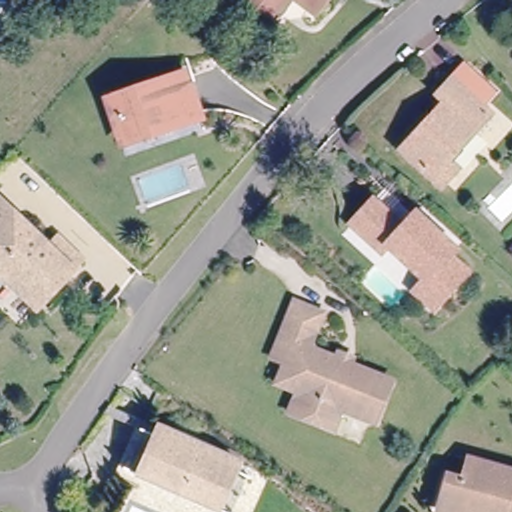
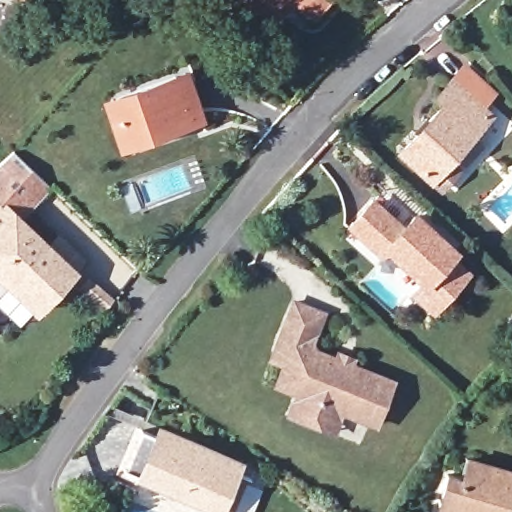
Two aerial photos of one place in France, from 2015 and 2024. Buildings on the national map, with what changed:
unchanged [(20,0),(25,0),(24,1),(20,0)]
unchanged [(220,0),(222,0),(221,1),(220,0)]
unchanged [(295,0),(282,15),(263,0),(295,0)]
unchanged [(329,0),(322,9),(310,0),(329,0)]
unchanged [(172,71),(184,69),(197,115),(186,119),(122,139),(109,90),(172,71)]
unchanged [(468,90),(485,105),(442,152),(451,161),(436,177),(399,142),(442,93),(436,86),(449,72),(468,90)]
new [(12,151),(50,188),(14,222),(0,208),(0,163),(12,151)]
unchanged [(364,206),(393,233),(404,221),(443,257),(439,262),(456,278),(422,314),(404,297),(415,285),(378,250),(371,258),(341,230),(364,206)]
unchanged [(0,285),(0,208),(14,222),(67,273),(35,306),(28,313),(0,285)]
unchanged [(290,420),(296,405),(299,398),(279,390),(287,371),(273,365),(277,356),(296,310),(325,321),(312,351),(315,358),(338,367),(340,360),(353,365),(350,372),(392,390),(376,429),(343,415),(340,423),(334,437),(290,420)]
unchanged [(122,468),(140,428),(174,443),(177,435),(231,459),(227,467),(244,474),(227,512),(220,512),(175,492),(157,483),(122,468)]
unchanged [(452,486),(465,490),(470,470),(476,471),(512,481),(512,512),(445,512),(452,486)]

